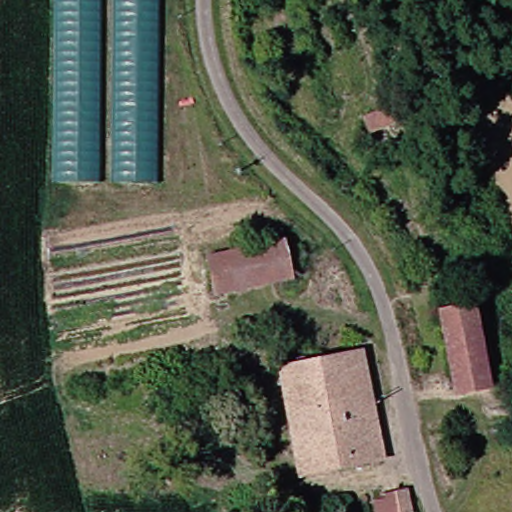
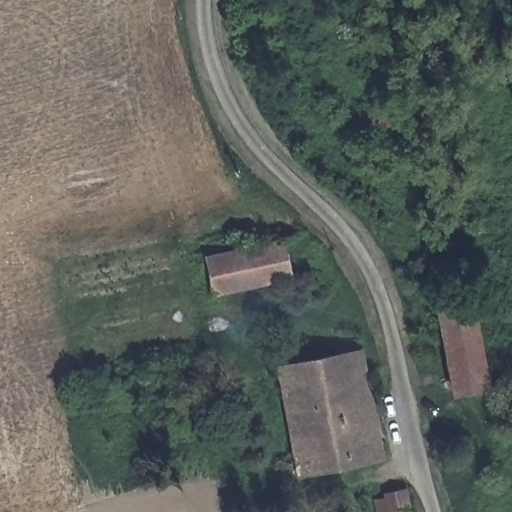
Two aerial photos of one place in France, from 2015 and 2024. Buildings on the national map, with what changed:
demolished [(159,182),(55,178),(57,0),(160,0),(159,182)]
unchanged [(399,118),(373,129),(367,117),(393,107),(399,118)]
unchanged [(280,275),(205,290),(197,257),(273,240),(280,275)]
unchanged [(476,386),(447,391),(433,312),(461,305),(476,386)]
unchanged [(376,461),(349,465),(350,472),(296,480),(276,374),(275,359),(289,357),(295,366),(357,357),(376,461)]
unchanged [(381,512),(381,506),(389,502),(389,497),(412,491),(416,512),(381,512)]

